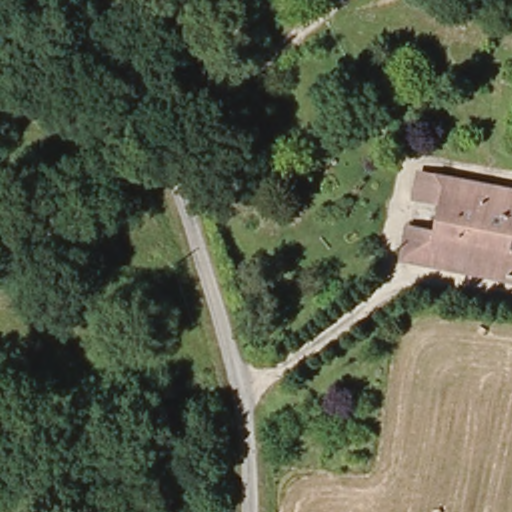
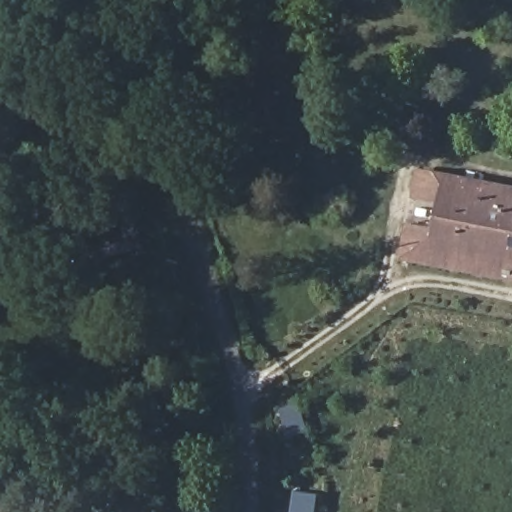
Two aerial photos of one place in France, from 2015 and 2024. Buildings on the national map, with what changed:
unchanged [(404,259),(410,230),(440,236),(446,207),(417,201),(422,174),(512,191),(512,279),(404,259)]
new [(295,492),(315,494),(312,512),(292,512),(295,492)]

